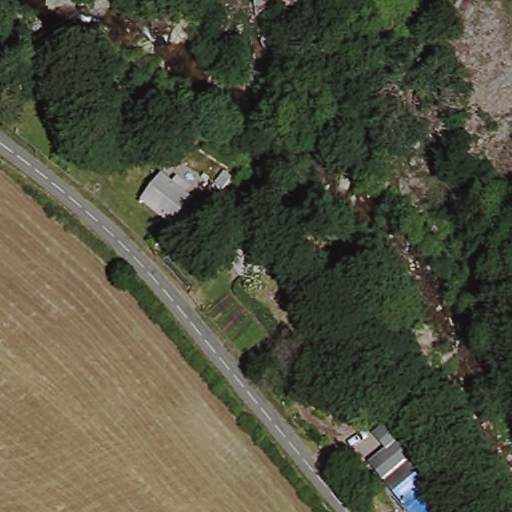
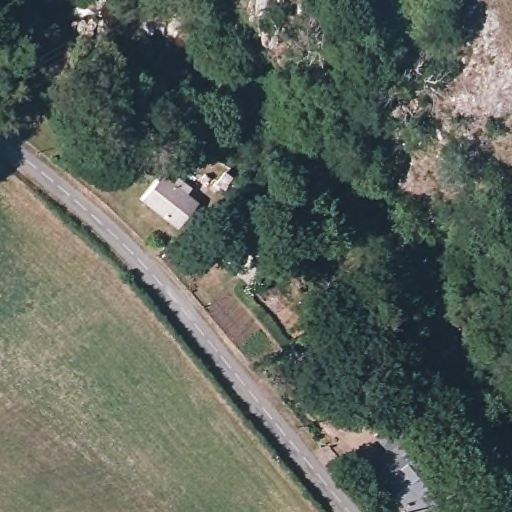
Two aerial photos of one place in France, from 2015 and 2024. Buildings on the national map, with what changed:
unchanged [(172,226),(138,201),(164,170),(196,197),(172,226)]
unchanged [(245,189),(234,182),(242,170),(253,175),(245,189)]
unchanged [(238,282),(225,264),(255,236),(269,253),(238,282)]
unchanged [(370,436),(383,425),(370,409),(389,394),(402,409),(391,418),(410,441),(405,447),(399,454),(392,446),(384,453),(370,436)]
unchanged [(409,512),(402,512),(397,506),(377,479),(384,473),(392,466),(399,474),(405,467),(414,476),(421,484),(429,494),(409,512)]

